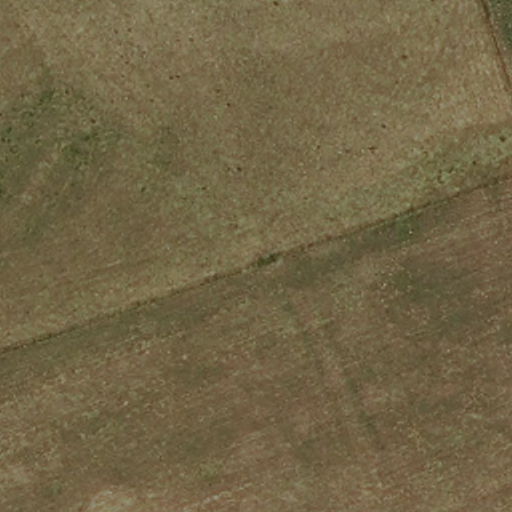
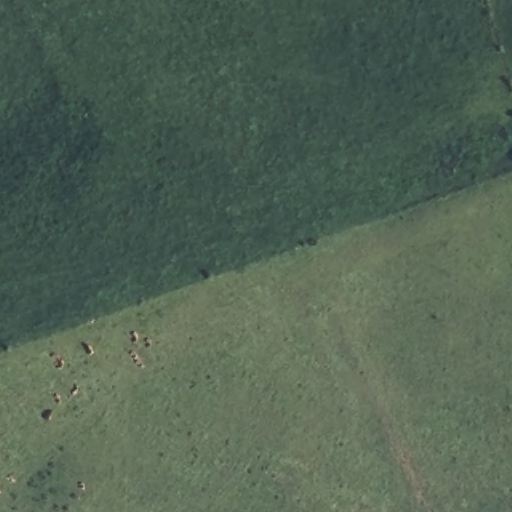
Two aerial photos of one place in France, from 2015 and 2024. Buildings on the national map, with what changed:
[]

